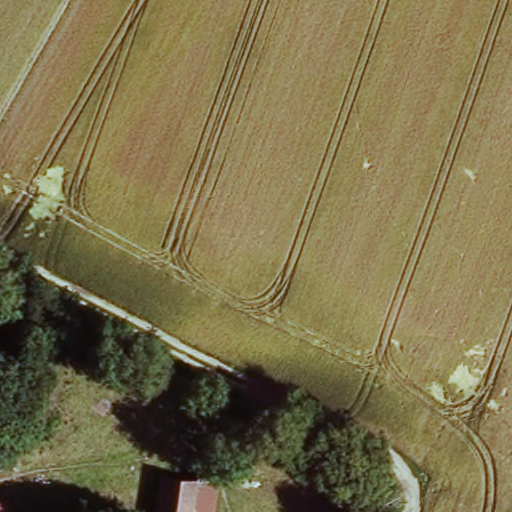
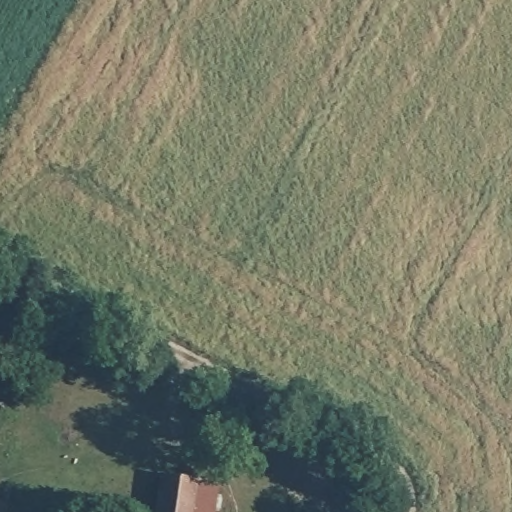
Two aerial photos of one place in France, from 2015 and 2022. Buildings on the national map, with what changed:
unchanged [(164,476),(190,481),(185,512),(158,512),(164,476)]
unchanged [(210,512),(185,512),(190,481),(214,483),(210,512)]
unchanged [(12,497),(7,511),(11,512),(0,512),(0,491),(12,497)]

